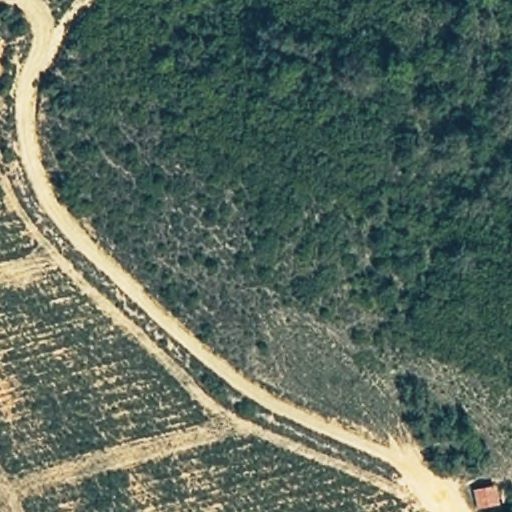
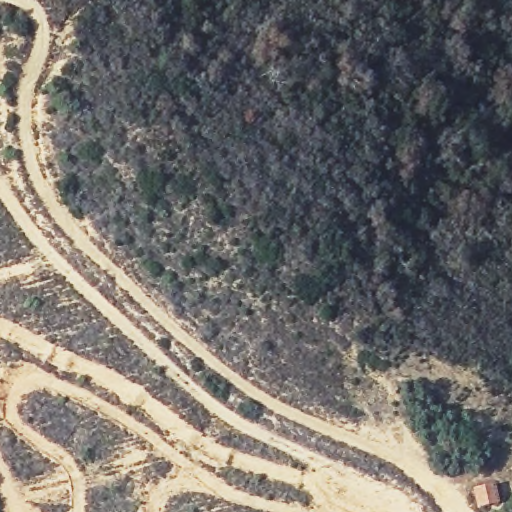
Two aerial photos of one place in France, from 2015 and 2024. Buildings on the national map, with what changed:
unchanged [(495,506),(473,510),(470,491),(493,487),(495,506)]

